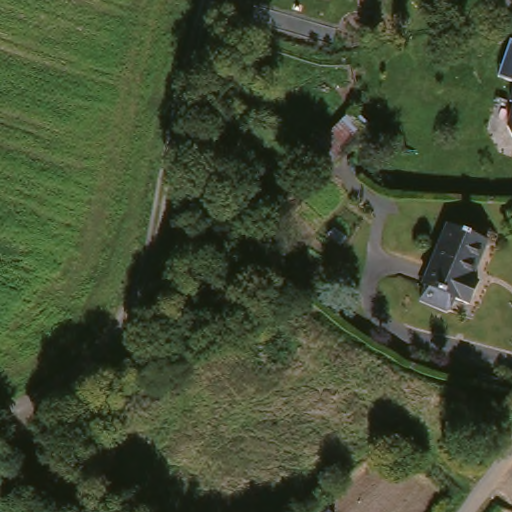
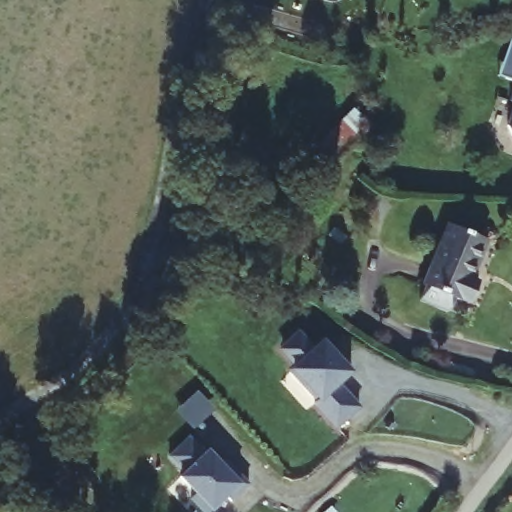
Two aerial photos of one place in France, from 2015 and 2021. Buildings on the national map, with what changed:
unchanged [(498,76),(511,40),(512,41),(512,82),(498,76)]
unchanged [(508,102),(512,91),(512,104),(508,102)]
unchanged [(361,107),(378,124),(342,160),(325,142),(361,107)]
unchanged [(508,137),(504,127),(512,107),(512,138),(508,137)]
unchanged [(445,305),(416,290),(452,220),(493,242),(468,294),(454,287),(445,305)]
new [(313,405),(318,400),(291,371),(288,370),(294,365),(280,351),(300,332),(318,347),(323,342),(354,374),(342,386),(362,407),(337,429),(313,405)]
new [(196,495),(180,478),(186,473),(169,456),(189,437),(207,452),(209,450),(222,463),(226,459),(249,485),(251,485),(232,502),(228,498),(213,512),(203,512),(193,501),(196,495)]

